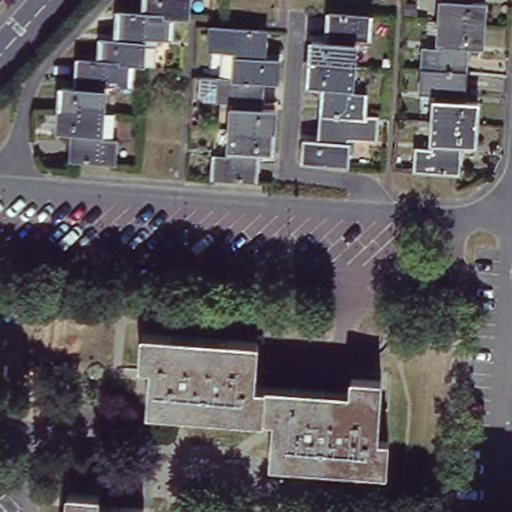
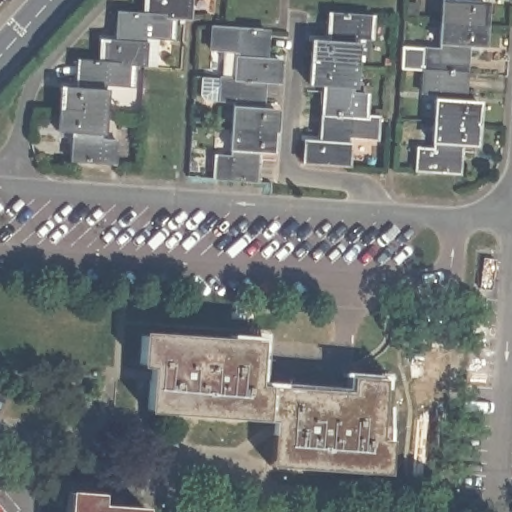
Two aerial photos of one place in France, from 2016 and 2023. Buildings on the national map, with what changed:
unchanged [(188,0),(187,19),(184,19),(172,18),(172,17),(144,15),(145,14),(145,0),(188,0)]
unchanged [(470,0),(470,1),(485,2),(483,25),(440,21),(442,0),(470,0)]
unchanged [(101,40),(116,40),(118,12),(145,14),(144,15),(172,17),(172,18),(171,40),(157,39),(155,67),(142,66),(132,65),(100,62),(100,60),(101,40)]
unchanged [(317,40),(332,41),(334,13),(376,15),(374,39),(361,38),(359,65),(315,62),(317,40)]
unchanged [(440,21),(483,25),(482,46),(466,45),(465,73),(423,70),(424,48),(438,49),(440,21)]
unchanged [(216,26),(270,30),(268,59),(283,60),(282,82),(267,81),(267,80),(239,79),(239,78),(225,77),(227,50),(215,50),(216,26)]
unchanged [(61,87),(76,89),(79,59),(100,60),(100,62),(132,65),(131,87),(105,85),(104,112),(60,110),(61,87)]
unchanged [(315,62),(359,65),(357,93),(371,94),(370,115),(370,116),(327,114),(330,85),(315,85),(315,62)]
unchanged [(423,70),(465,73),(462,101),(477,102),(476,124),(433,121),(435,94),(421,94),(423,70)]
unchanged [(238,101),(209,99),(205,95),(205,76),(225,77),(239,78),(239,79),(267,80),(267,81),(265,109),(280,110),(279,131),(235,129),(238,101)]
unchanged [(60,110),(104,112),(101,140),(115,141),(114,164),(72,161),(74,132),(59,131),(60,110)]
unchanged [(327,114),(370,116),(370,115),(383,116),(382,140),(353,137),(351,166),(309,164),(310,140),(326,141),(327,114)]
unchanged [(433,121),(476,124),(475,146),(460,145),(458,174),(416,171),(417,147),(431,149),(433,121)]
unchanged [(235,129),(279,131),(277,154),(262,152),(260,181),(218,179),(220,155),(234,156),(235,129)]
unchanged [(142,333),(258,341),(255,386),(350,393),(351,378),(382,380),(377,440),(388,441),(385,473),(271,465),(274,420),(148,411),(151,366),(140,365),(142,333)]
unchanged [(149,512),(72,512),(73,491),(105,493),(105,505),(150,507),(149,512)]

